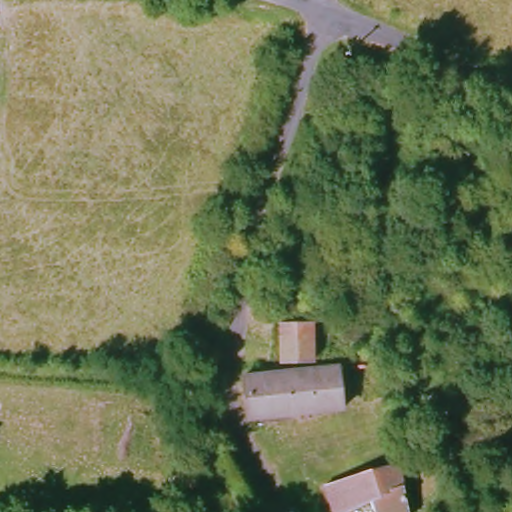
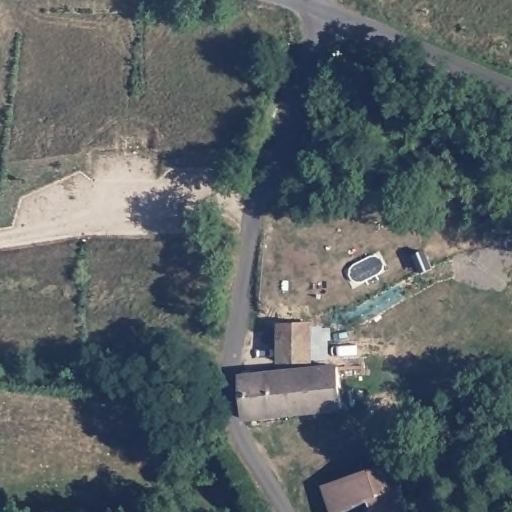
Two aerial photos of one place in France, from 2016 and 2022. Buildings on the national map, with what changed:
unchanged [(314,355),(276,356),(275,321),(311,320),(314,355)]
unchanged [(345,406),(334,407),(333,367),(363,364),(367,404),(345,406)]
unchanged [(315,370),(333,367),(334,407),(242,416),(238,377),(252,374),(315,370)]
unchanged [(218,376),(218,430),(185,428),(191,374),(218,376)]
unchanged [(333,511),(325,476),(345,473),(397,468),(403,512),(369,512),(367,505),(333,511)]

